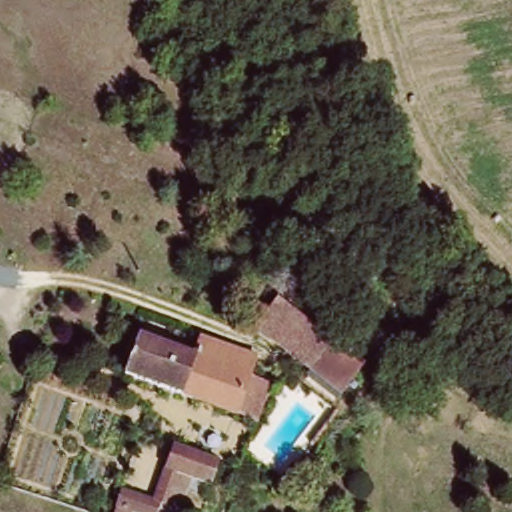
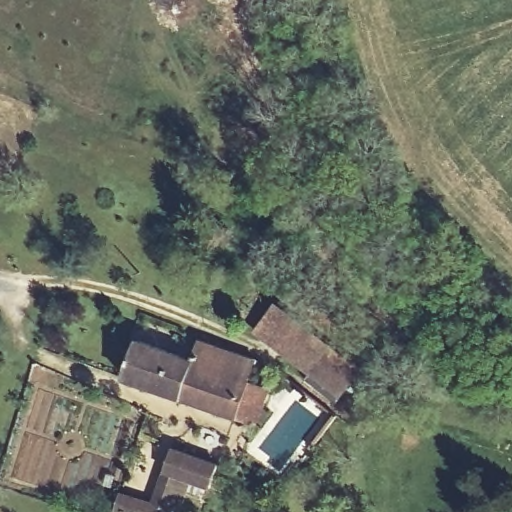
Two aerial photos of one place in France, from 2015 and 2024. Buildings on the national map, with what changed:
unchanged [(257,336),(278,306),(366,368),(347,402),(257,336)]
unchanged [(259,427),(239,421),(128,382),(141,343),(186,361),(194,345),(258,365),(252,386),(272,392),(259,427)]
unchanged [(137,468),(147,472),(139,498),(155,503),(177,450),(221,468),(212,490),(204,487),(199,494),(188,491),(179,512),(177,512),(168,510),(166,512),(121,512),(137,468)]

